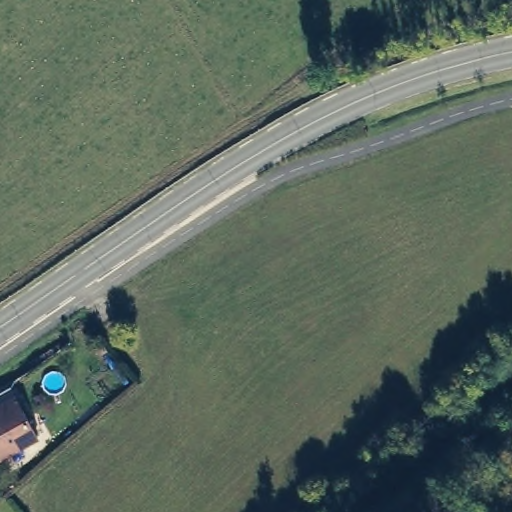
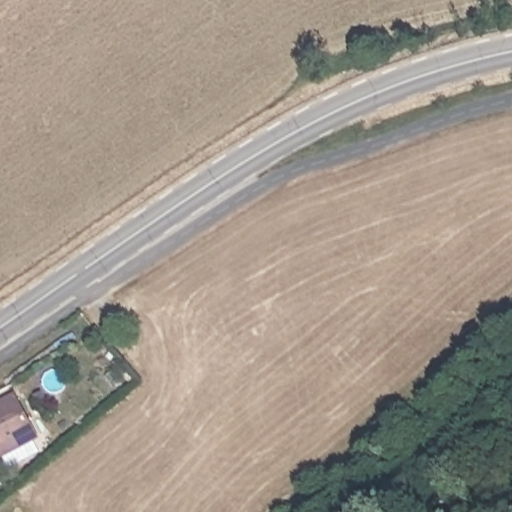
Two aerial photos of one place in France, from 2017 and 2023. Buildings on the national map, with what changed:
unchanged [(19,398),(40,438),(0,460),(0,395),(13,388),(19,398)]

